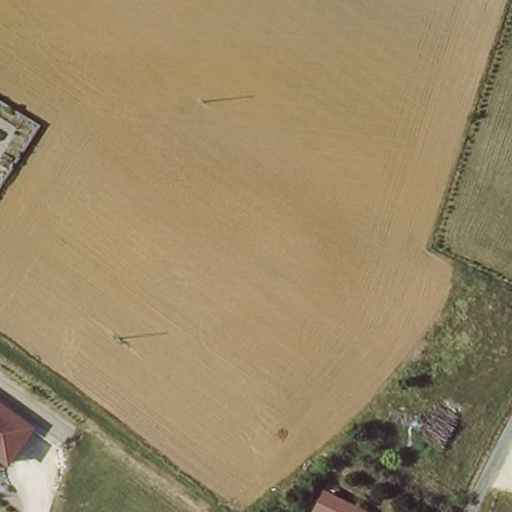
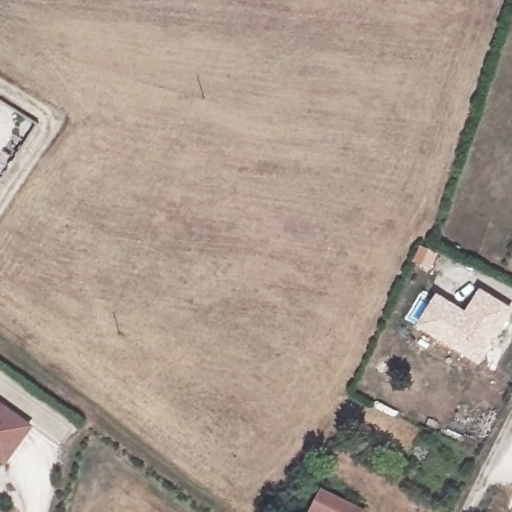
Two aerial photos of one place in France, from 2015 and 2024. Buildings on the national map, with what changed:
new [(465,309),(479,287),(512,308),(512,311),(481,363),(416,324),(436,292),(465,309)]
unchanged [(4,461),(0,459),(0,405),(30,426),(4,461)]
unchanged [(320,495),(351,512),(308,512),(320,495)]

